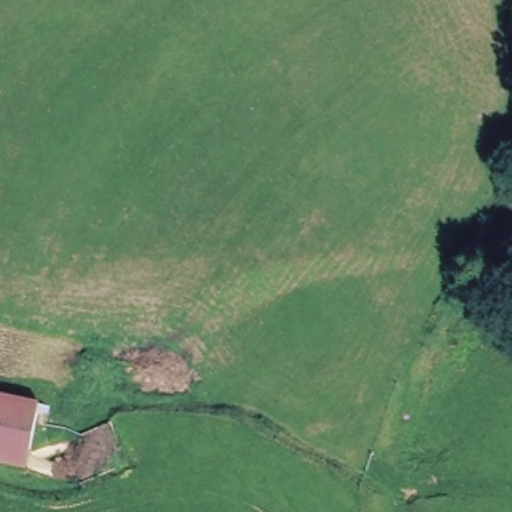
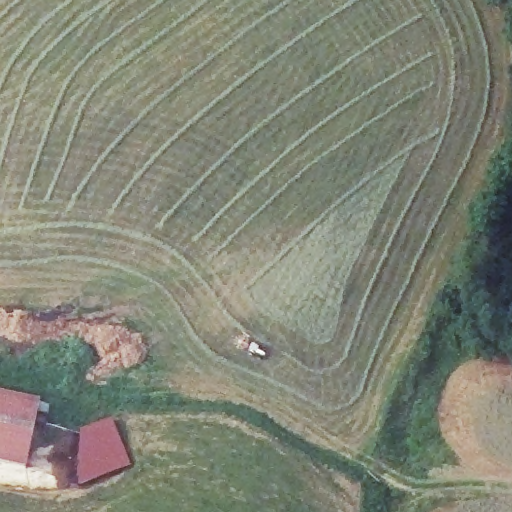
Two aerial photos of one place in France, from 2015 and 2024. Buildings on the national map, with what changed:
unchanged [(42,400),(40,412),(31,463),(0,458),(0,392),(27,397),(42,400)]
new [(80,432),(112,419),(130,464),(78,486),(80,432)]

